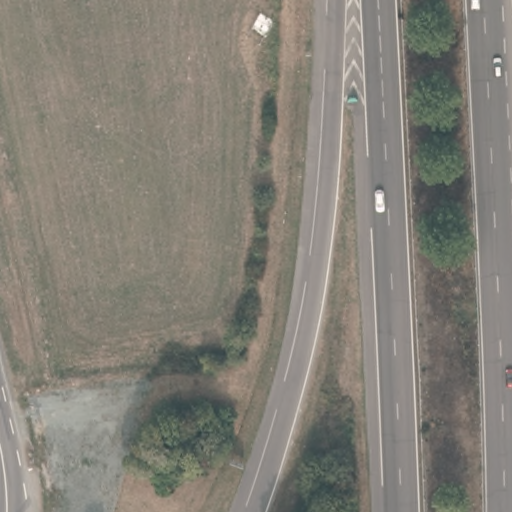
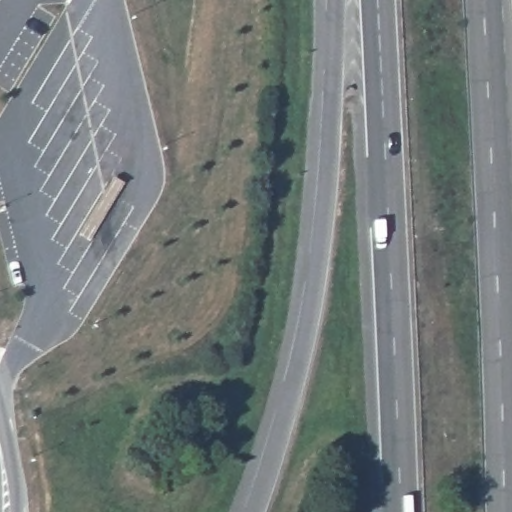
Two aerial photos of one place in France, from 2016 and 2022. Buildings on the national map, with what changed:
[]

